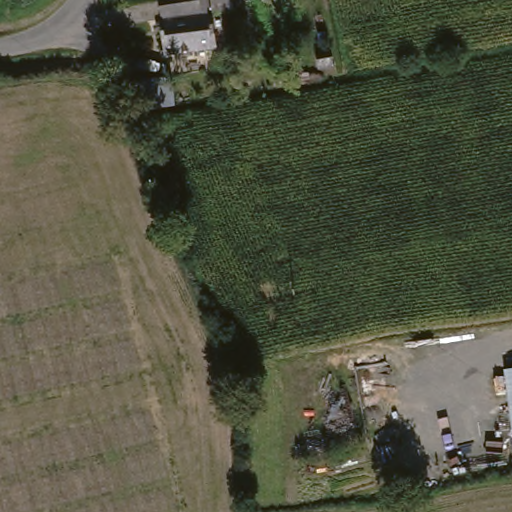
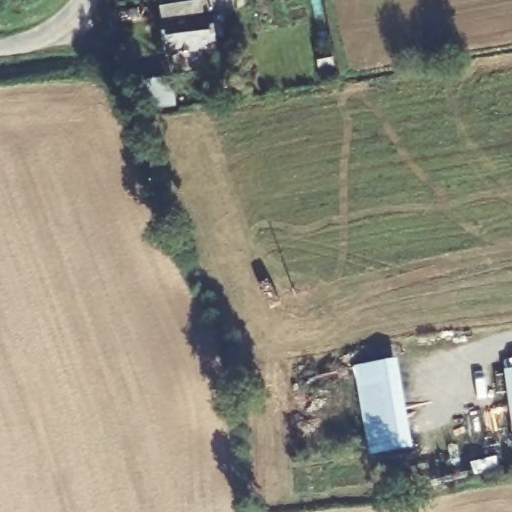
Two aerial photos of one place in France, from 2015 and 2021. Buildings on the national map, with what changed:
unchanged [(214,12),(219,46),(166,51),(160,0),(236,0),(237,9),(214,12)]
unchanged [(136,115),(133,87),(174,82),(177,109),(136,115)]
new [(397,359),(413,448),(368,455),(354,367),(397,359)]

